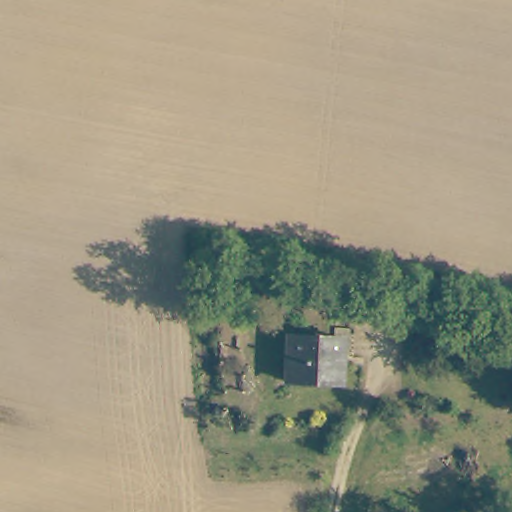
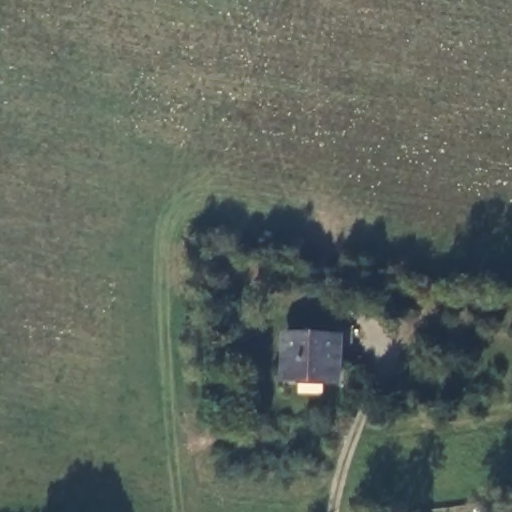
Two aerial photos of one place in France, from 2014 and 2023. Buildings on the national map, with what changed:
unchanged [(343,334),(340,381),(285,378),(289,331),(343,334)]

